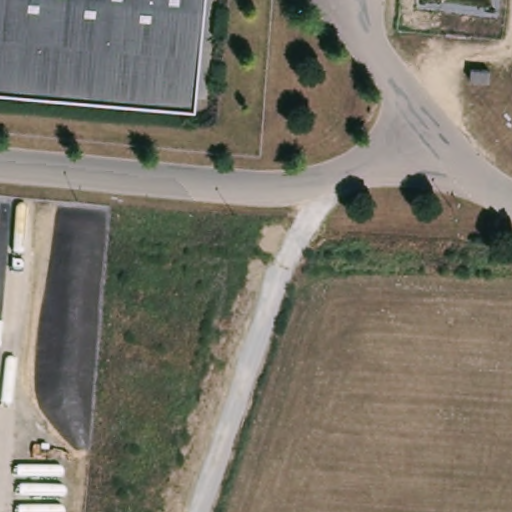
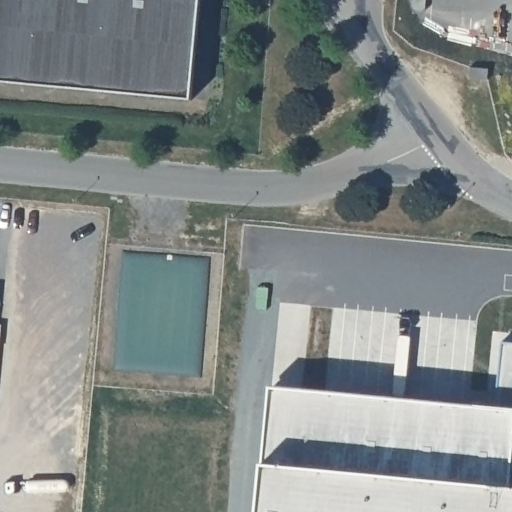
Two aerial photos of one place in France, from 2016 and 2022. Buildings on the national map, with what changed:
unchanged [(0,82),(0,0),(197,0),(187,100),(0,82)]
new [(271,387),(495,406),(501,341),(512,342),(512,512),(259,512),(271,387)]

